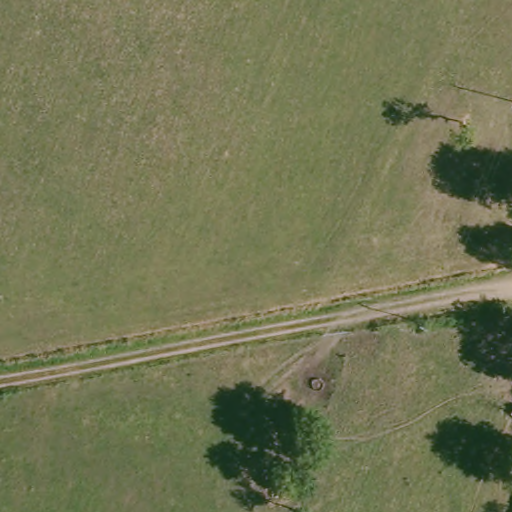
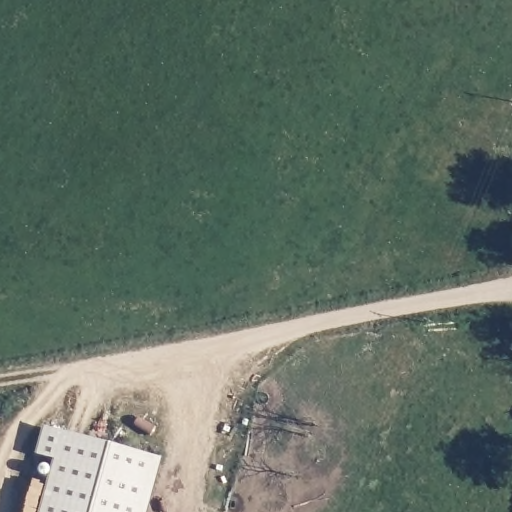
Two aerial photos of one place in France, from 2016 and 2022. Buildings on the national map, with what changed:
new [(52,460),(35,455),(41,427),(160,457),(145,512),(38,512),(52,460)]

